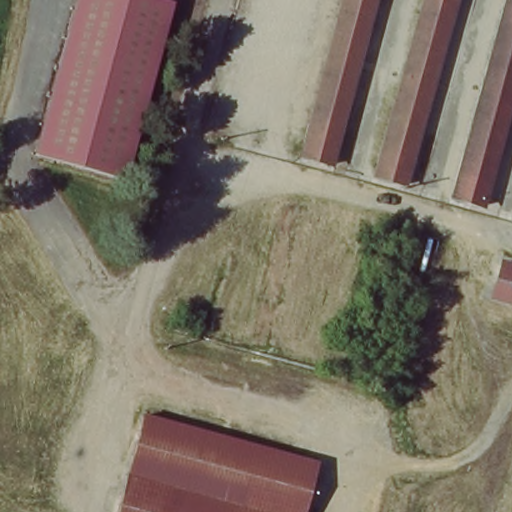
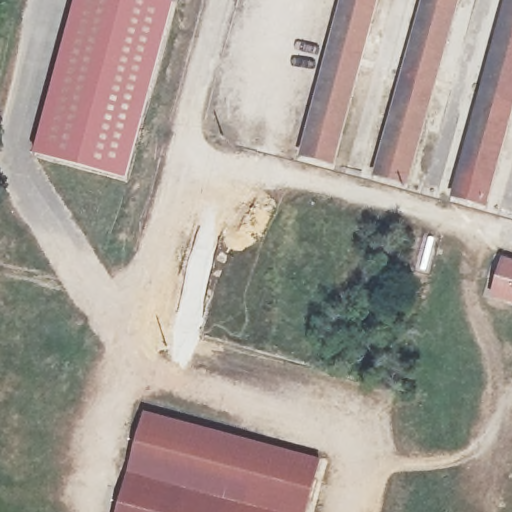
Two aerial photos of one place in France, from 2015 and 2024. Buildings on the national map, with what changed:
unchanged [(174,2),(124,184),(33,157),(76,0),(165,0),(174,2)]
unchanged [(335,160),(300,151),(343,0),(379,0),(335,160)]
unchanged [(405,185),(376,177),(424,0),(454,0),(405,185)]
unchanged [(512,104),(484,206),(454,197),(508,0),(512,0),(512,104)]
unchanged [(512,304),(492,299),(504,256),(512,258),(512,304)]
unchanged [(311,512),(123,512),(149,412),(326,463),(311,512)]

